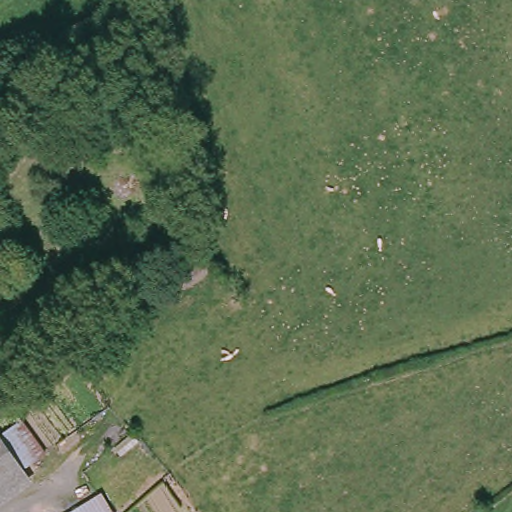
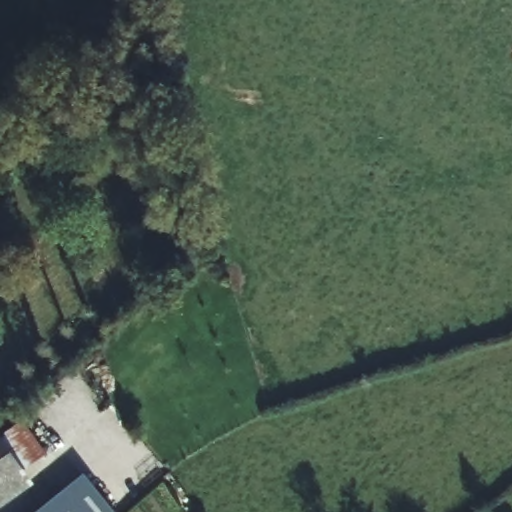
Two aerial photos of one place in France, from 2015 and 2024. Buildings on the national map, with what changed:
unchanged [(3,444),(23,429),(46,455),(25,471),(0,491),(0,446),(3,444)]
new [(112,512),(44,512),(85,478),(112,512)]
demolished [(112,512),(73,512),(102,495),(112,512)]

